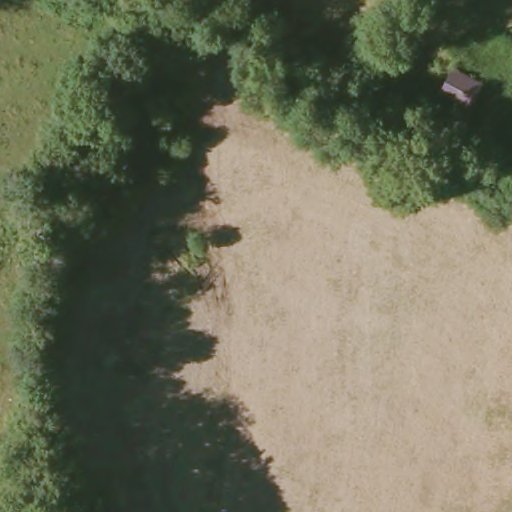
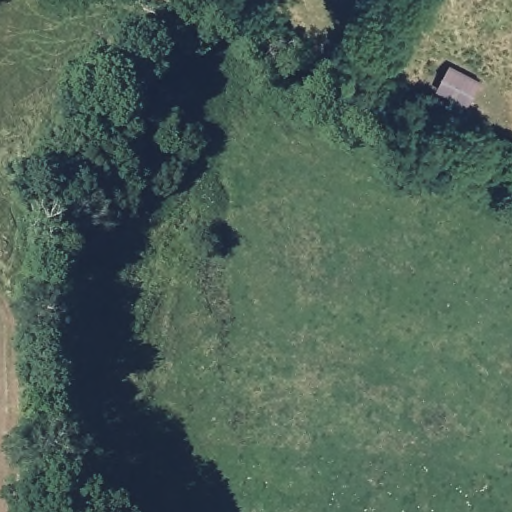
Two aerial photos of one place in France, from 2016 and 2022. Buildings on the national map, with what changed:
unchanged [(480,81),(468,104),(440,90),(452,66),(480,81)]

